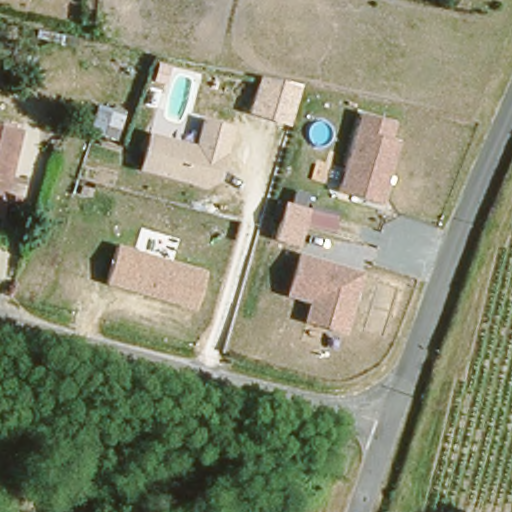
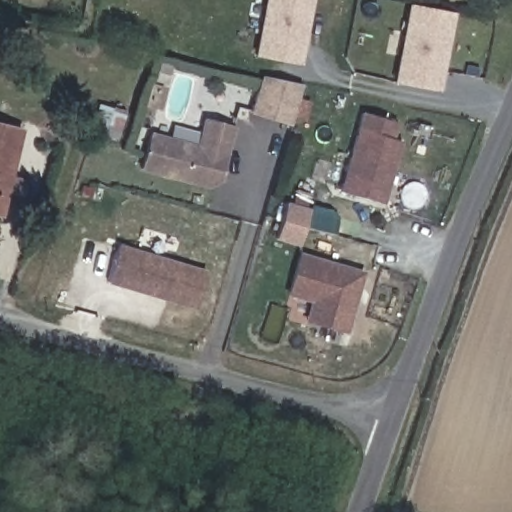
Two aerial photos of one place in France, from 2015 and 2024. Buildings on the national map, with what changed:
new [(301,65),(252,56),(263,0),(314,0),(301,65)]
new [(406,5),(454,14),(439,92),(391,83),(406,5)]
unchanged [(290,125),(250,114),(259,76),(300,86),(290,125)]
unchanged [(118,144),(86,131),(94,100),(126,109),(118,144)]
unchanged [(359,110),(396,121),(391,138),(401,141),(381,204),(336,190),(359,110)]
demolished [(336,122),(327,154),(301,147),(311,115),(336,122)]
unchanged [(201,120),(233,128),(219,182),(206,187),(139,171),(148,135),(194,144),(201,120)]
unchanged [(16,130),(0,194),(0,126),(16,130)]
unchanged [(26,177),(18,206),(5,205),(13,174),(26,177)]
unchanged [(308,209),(297,247),(272,240),(283,202),(308,209)]
unchanged [(193,310),(105,283),(118,245),(205,271),(193,310)]
unchanged [(295,251),(362,270),(343,335),(300,322),(306,302),(283,296),(295,251)]

